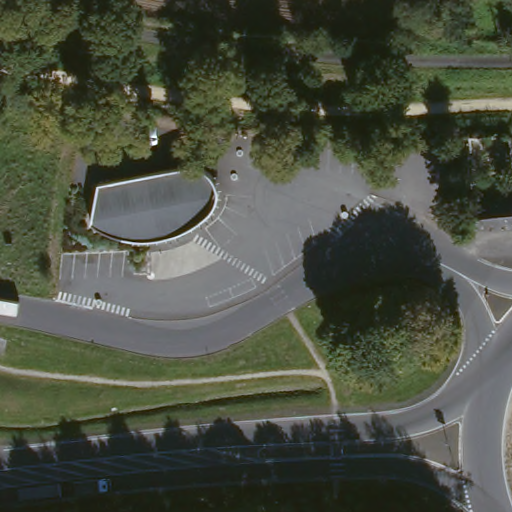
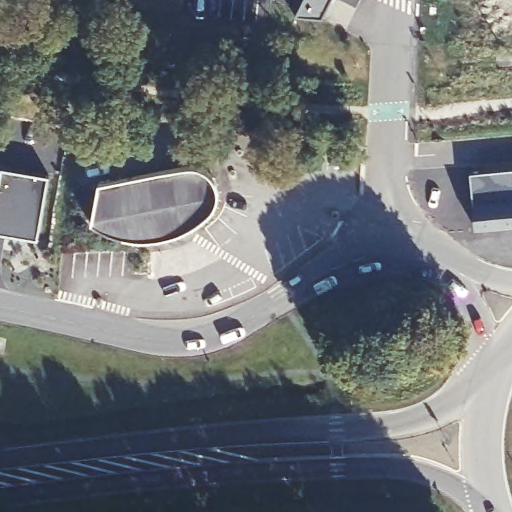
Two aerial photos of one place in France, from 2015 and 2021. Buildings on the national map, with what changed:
new [(295,8),(298,0),(326,0),(320,14),(295,8)]
unchanged [(101,181),(195,163),(208,169),(218,180),(219,197),(208,215),(189,228),(150,239),(124,235),(93,219),(101,181)]
new [(2,169),(48,177),(38,238),(0,232),(0,181),(2,169)]
unchanged [(474,201),(499,199),(499,186),(512,185),(512,226),(476,230),(474,201)]

